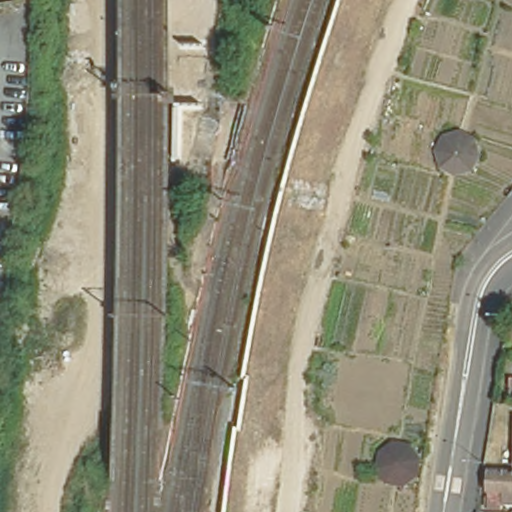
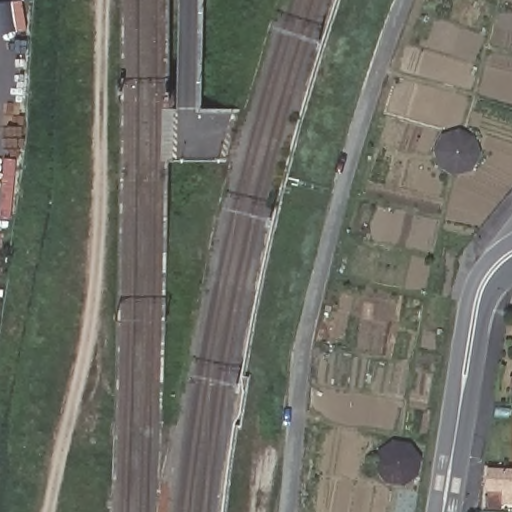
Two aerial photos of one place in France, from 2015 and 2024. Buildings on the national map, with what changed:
unchanged [(445,173),(439,167),(436,159),(435,151),(437,143),(442,136),(448,131),(456,128),(465,128),(472,131),(479,136),(483,143),(485,151),(484,160),(481,167),(475,173),(467,177),(459,178),(451,176),(445,173)]
unchanged [(409,441),(419,452),(422,467),(417,481),(406,490),(392,493),(377,487),(368,476),(366,461),(372,447),(385,438),(399,437),(409,441)]

